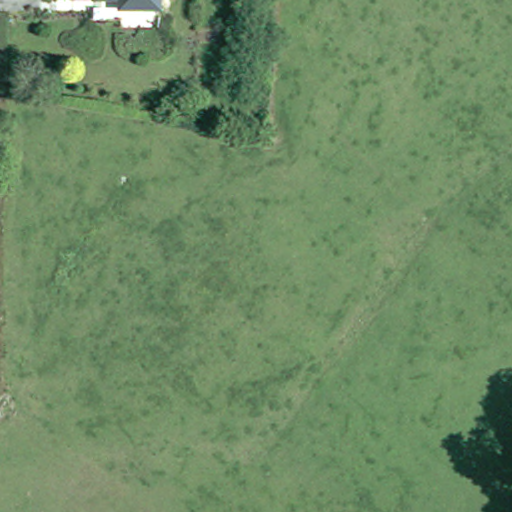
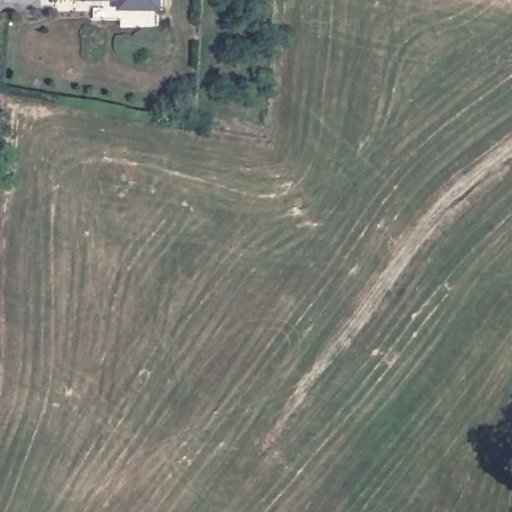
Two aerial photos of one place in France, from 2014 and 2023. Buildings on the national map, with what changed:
unchanged [(126,14),(126,0),(100,0),(163,0),(163,14),(126,14)]

